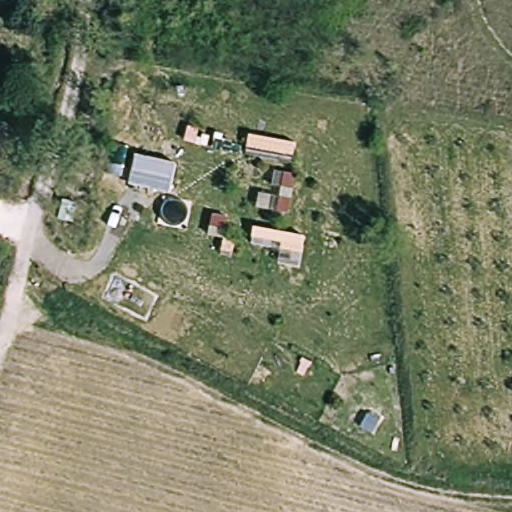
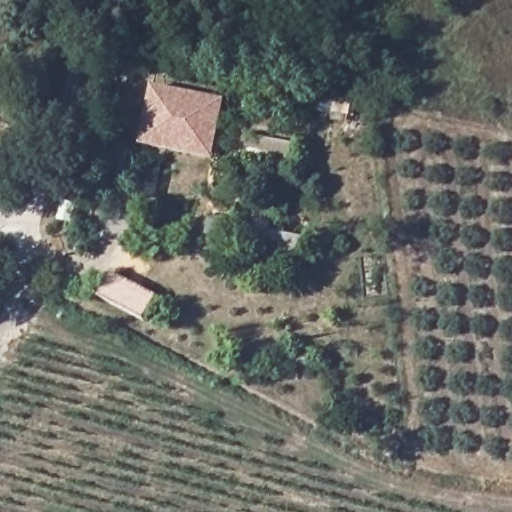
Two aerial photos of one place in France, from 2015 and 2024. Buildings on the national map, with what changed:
new [(155,83),(227,96),(223,119),(208,116),(205,138),(174,132),(171,147),(153,143),(145,142),(151,106),(155,83)]
new [(174,132),(205,138),(208,116),(223,119),(216,155),(171,147),(174,132)]
new [(256,221),(307,234),(305,244),(254,231),(256,221)]
new [(110,276),(156,300),(144,324),(98,301),(110,276)]

